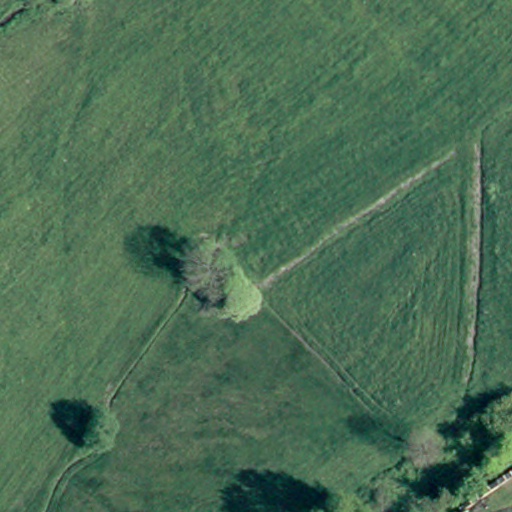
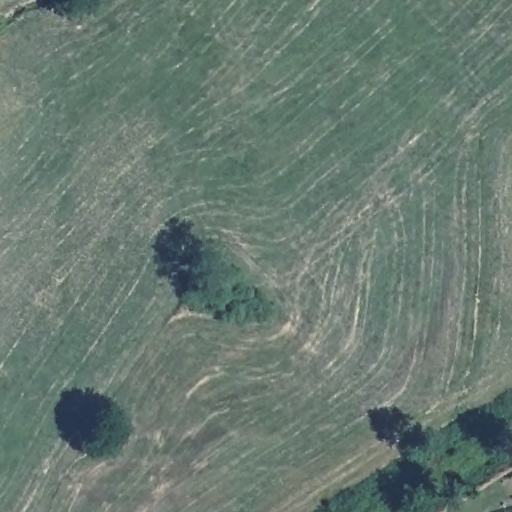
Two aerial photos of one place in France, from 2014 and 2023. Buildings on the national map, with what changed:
[]

